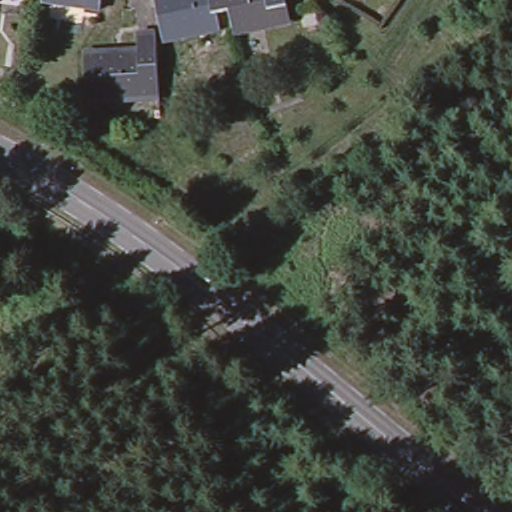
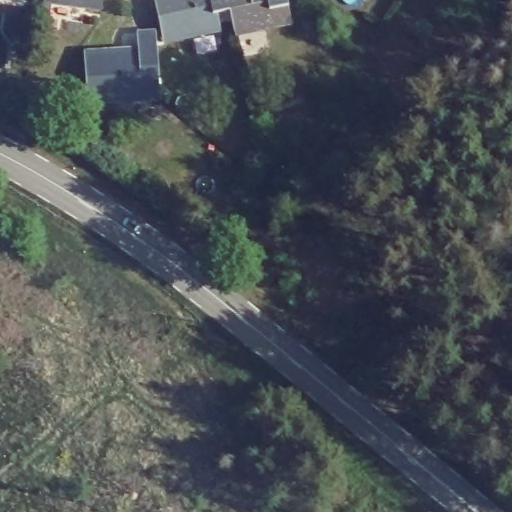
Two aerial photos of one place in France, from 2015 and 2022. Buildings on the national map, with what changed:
unchanged [(50,0),(103,0),(101,7),(50,0)]
unchanged [(235,34),(231,11),(216,14),(218,28),(165,36),(160,0),(285,0),(288,26),(235,34)]
unchanged [(140,51),(139,37),(157,36),(162,97),(90,104),(88,56),(140,51)]
unchanged [(211,230),(225,240),(218,249),(205,237),(211,230)]

